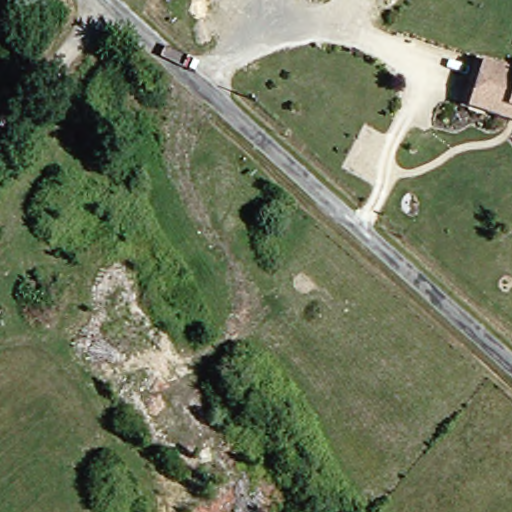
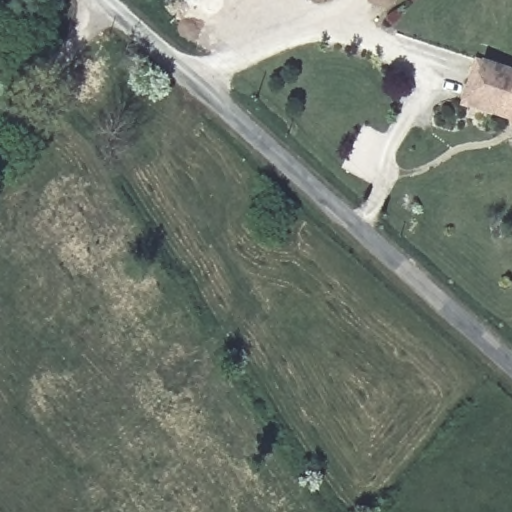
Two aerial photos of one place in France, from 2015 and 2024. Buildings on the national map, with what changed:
unchanged [(465,106),(479,60),(488,62),(512,69),(512,120),(509,120),(477,109),(465,106)]

